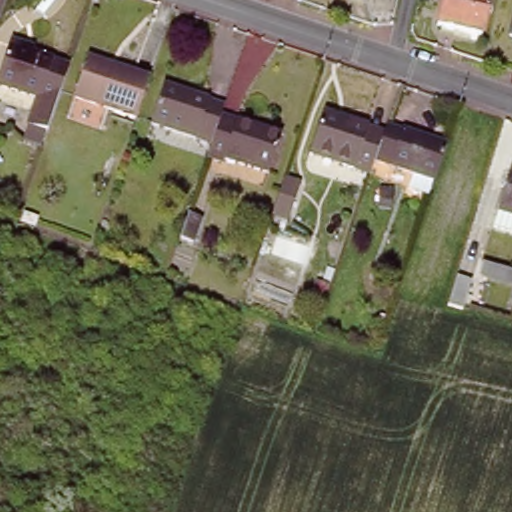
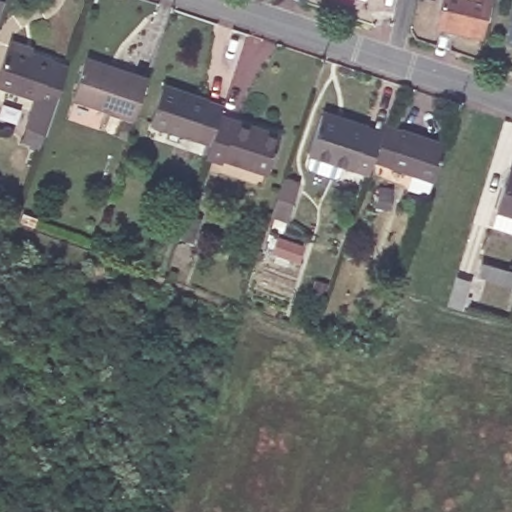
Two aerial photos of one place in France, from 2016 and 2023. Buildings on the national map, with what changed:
unchanged [(433,29),(440,0),(488,0),(477,40),(433,29)]
unchanged [(512,28),(512,38),(510,37),(512,28)]
unchanged [(36,132),(39,120),(44,105),(4,90),(16,50),(17,45),(40,54),(39,57),(59,64),(59,67),(73,72),(56,125),(52,137),(36,132)]
unchanged [(74,102),(93,54),(153,75),(133,127),(74,102)]
unchanged [(168,94),(169,91),(197,100),(213,106),(212,108),(228,113),(225,122),(216,149),(157,130),(168,94)]
unchanged [(369,180),(310,160),(323,122),(325,117),(351,126),(367,132),(366,134),(383,139),(374,165),(374,166),(369,180)]
unchanged [(225,122),(285,141),(272,179),(228,164),(226,169),(211,164),(216,149),(225,122)]
unchanged [(386,131),(399,136),(400,133),(448,150),(436,188),(434,187),(428,202),(408,195),(413,179),(374,165),(383,139),(386,131)]
unchanged [(498,205),(511,164),(512,164),(512,228),(492,221),(498,205)]
unchanged [(271,214),(274,207),(284,177),(298,182),(289,212),(286,219),(271,214)]
unchanged [(178,242),(184,225),(187,216),(200,220),(198,229),(193,246),(178,242)]
unchanged [(474,281),(464,310),(450,306),(459,276),(474,281)]

